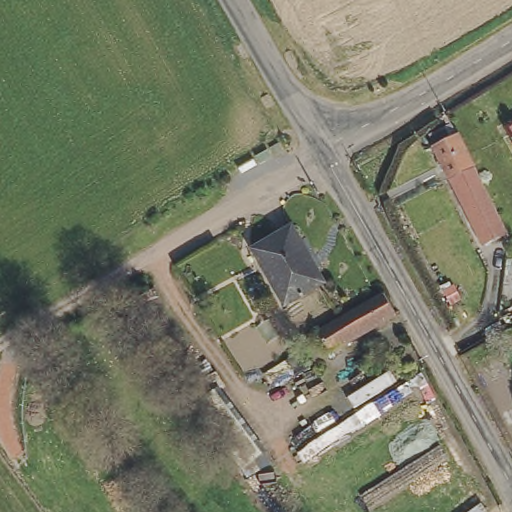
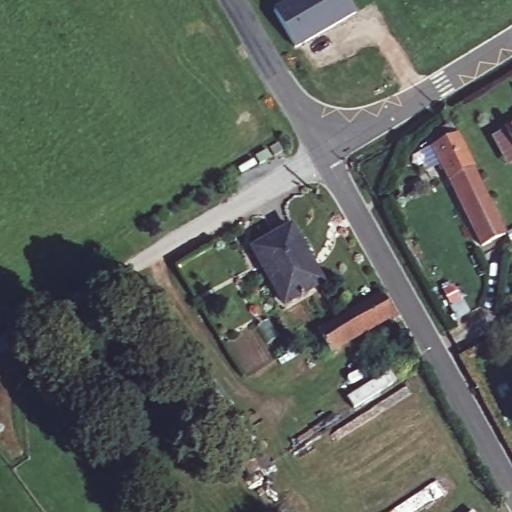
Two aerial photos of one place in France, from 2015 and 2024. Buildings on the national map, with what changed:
new [(350,0),(358,13),(297,49),(275,12),(294,0),(350,0)]
unchanged [(512,125),(512,136),(507,127),(512,125)]
unchanged [(463,135),(477,169),(448,181),(433,147),(463,135)]
new [(512,161),(505,165),(493,142),(506,135),(512,146),(512,161)]
unchanged [(477,169),(507,237),(478,251),(448,181),(477,169)]
unchanged [(296,227),(326,286),(287,306),(257,247),(296,227)]
unchanged [(376,299),(377,298),(389,292),(401,316),(324,356),(312,332),(376,299)]
unchanged [(247,483),(192,402),(187,396),(207,382),(214,392),(269,472),(247,483)]
demolished [(501,507),(504,512),(493,512),(501,507)]

